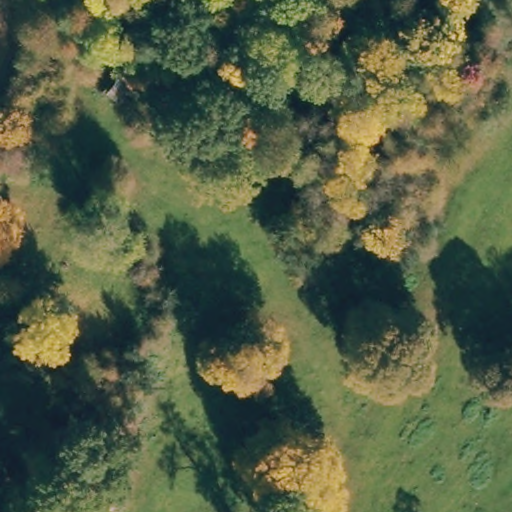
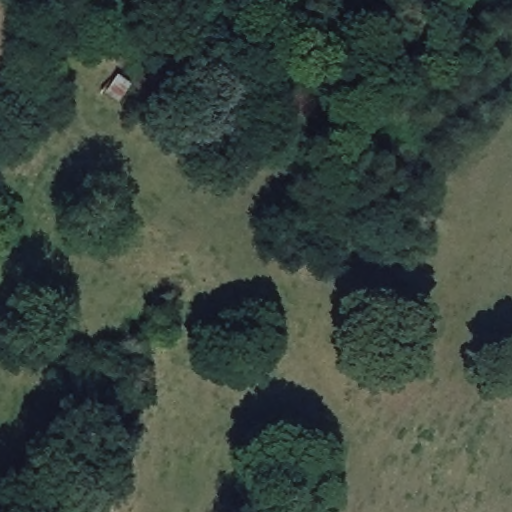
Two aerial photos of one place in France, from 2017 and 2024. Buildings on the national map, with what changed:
unchanged [(99,3),(65,68),(48,58),(79,0),(92,0),(99,3)]

